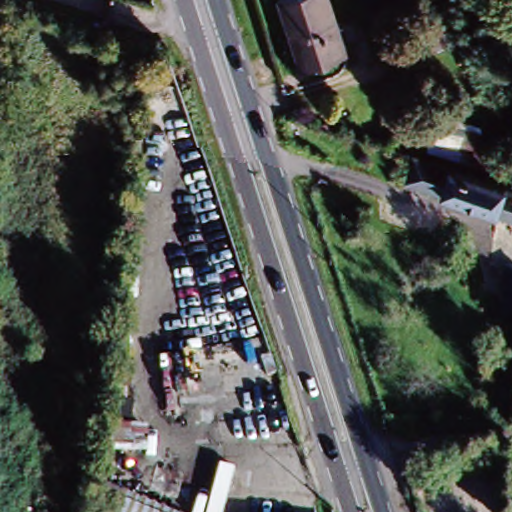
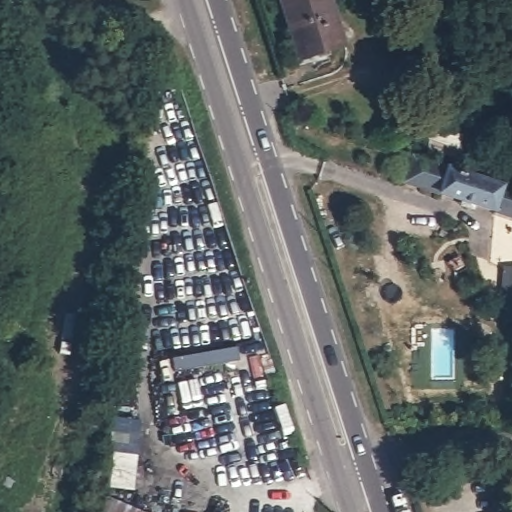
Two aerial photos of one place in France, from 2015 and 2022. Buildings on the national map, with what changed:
unchanged [(333,55),(294,65),(276,0),(319,0),(333,55)]
unchanged [(360,0),(386,0),(389,11),(365,20),(360,0)]
unchanged [(426,0),(458,0),(467,39),(440,49),(426,0)]
unchanged [(405,184),(416,149),(425,156),(437,110),(487,122),(492,157),(473,152),(467,171),(512,183),(512,214),(405,184)]
unchanged [(505,317),(506,311),(509,267),(512,267),(512,318),(505,317)]
unchanged [(163,512),(106,512),(107,489),(163,512)]

